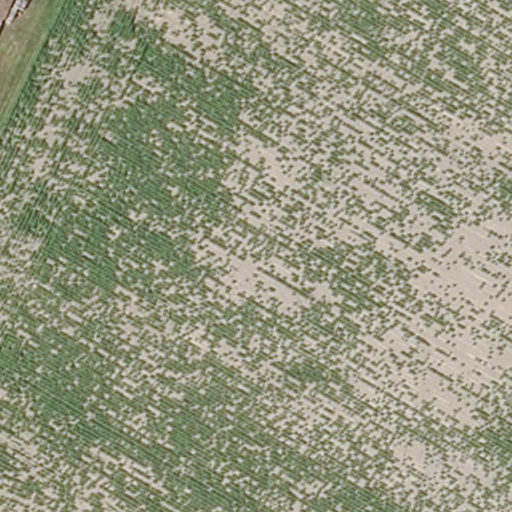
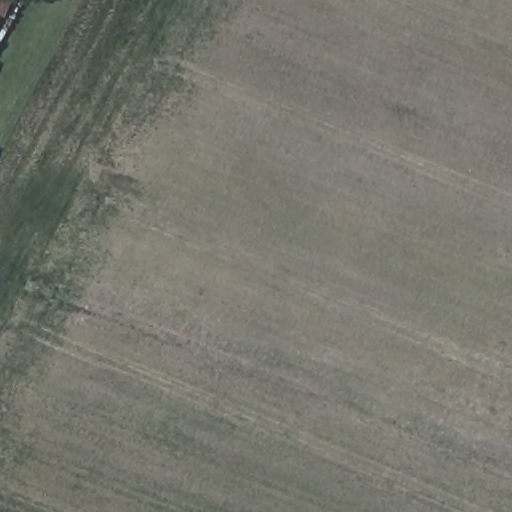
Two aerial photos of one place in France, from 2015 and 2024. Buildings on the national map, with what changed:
unchanged [(0,16),(0,1),(11,6),(6,19),(0,16)]

